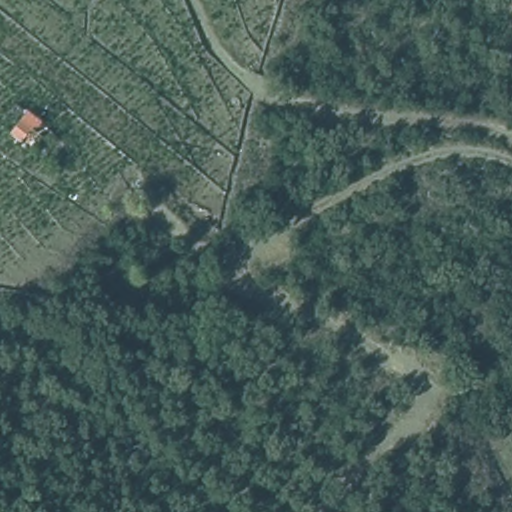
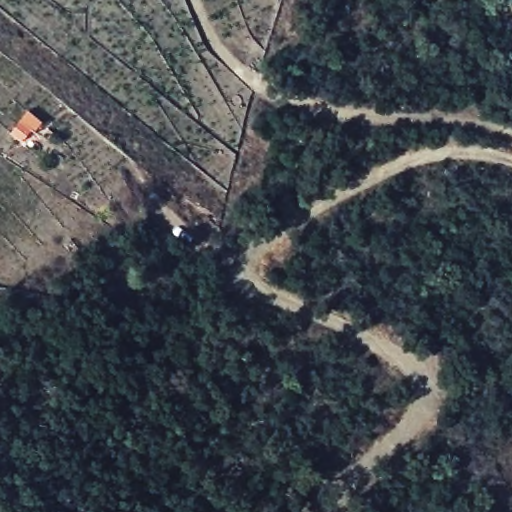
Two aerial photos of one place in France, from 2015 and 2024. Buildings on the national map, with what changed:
unchanged [(24,145),(12,133),(32,113),(44,123),(24,145)]

